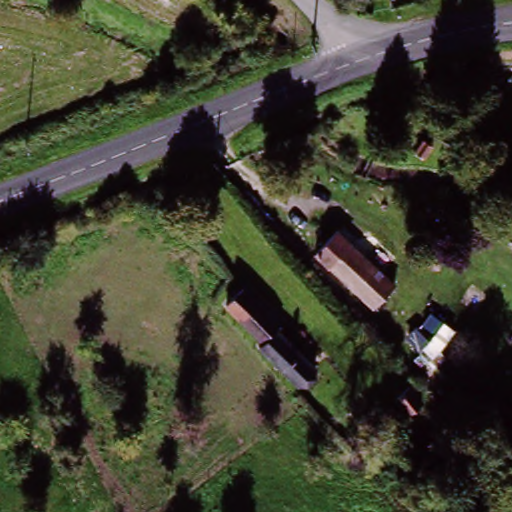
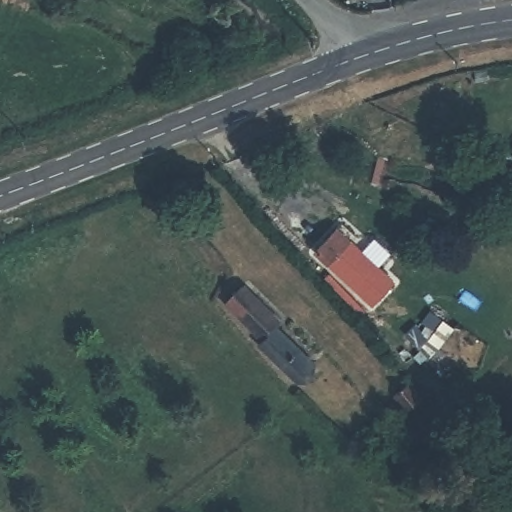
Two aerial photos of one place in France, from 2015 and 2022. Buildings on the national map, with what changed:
unchanged [(315,255),(333,232),(394,280),(375,303),(315,255)]
unchanged [(238,284),(275,324),(270,327),(306,367),(287,384),(250,343),(255,339),(221,301),(238,284)]
unchanged [(396,406),(382,419),(368,404),(383,391),(396,406)]
unchanged [(467,453),(427,438),(430,427),(472,441),(467,453)]
unchanged [(423,449),(462,464),(459,474),(420,459),(423,449)]

